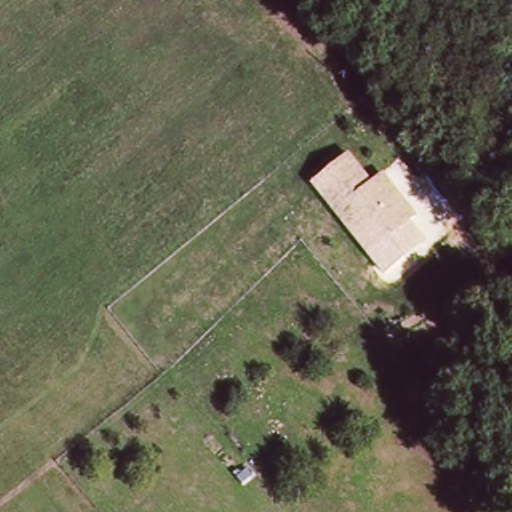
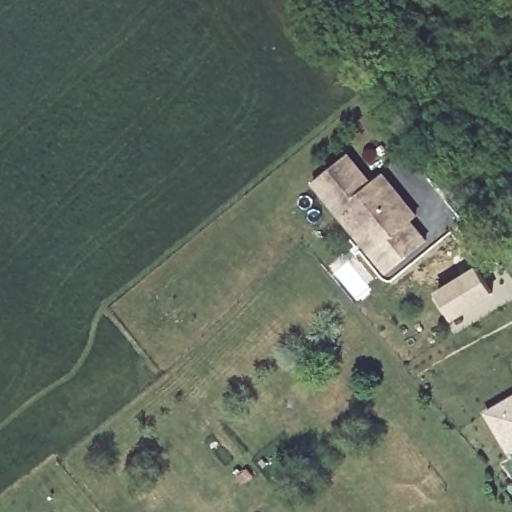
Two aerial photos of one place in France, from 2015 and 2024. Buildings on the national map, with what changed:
unchanged [(349,153),(371,182),(385,172),(416,209),(406,218),(423,239),(382,272),(311,185),(349,153)]
new [(475,269),(490,293),(449,318),(435,294),(475,269)]
new [(487,411),(512,397),(512,446),(509,448),(497,428),(487,411)]

